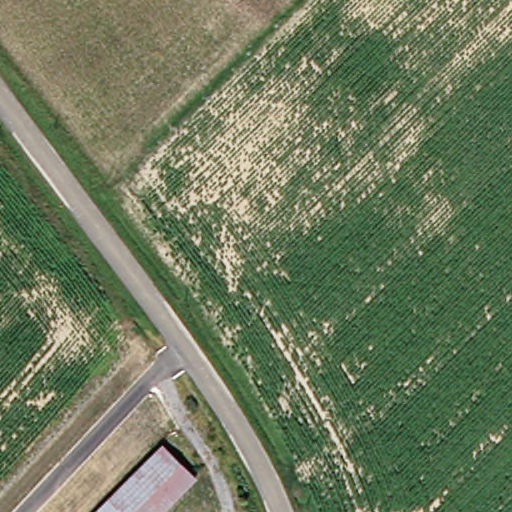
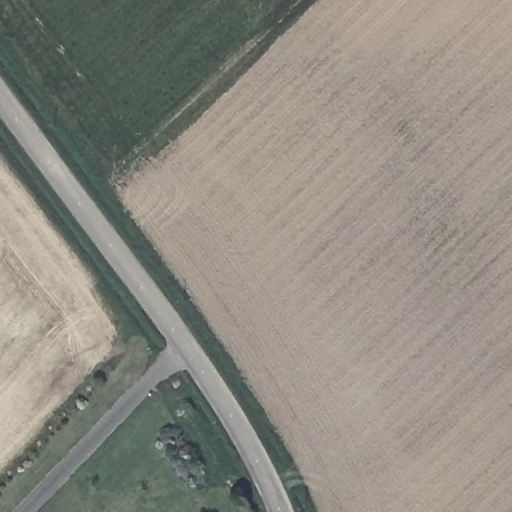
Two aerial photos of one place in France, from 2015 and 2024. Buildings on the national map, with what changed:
demolished [(198,476),(162,512),(97,512),(165,444),(198,476)]

